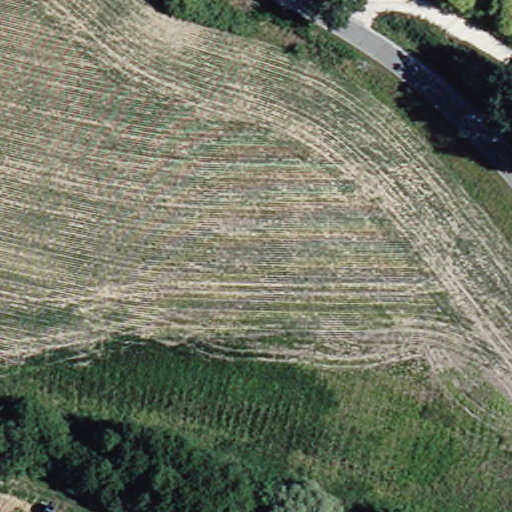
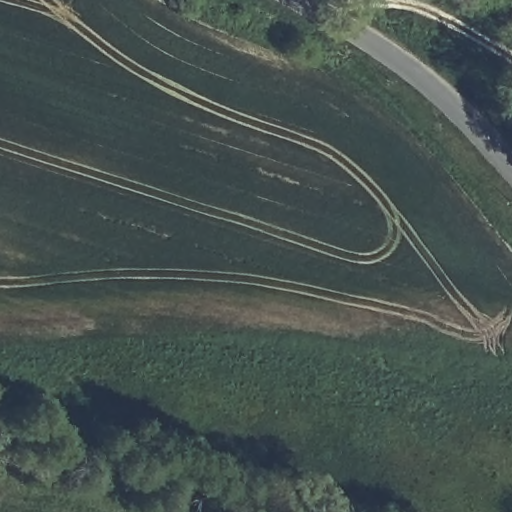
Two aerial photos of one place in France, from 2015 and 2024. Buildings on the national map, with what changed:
[]

